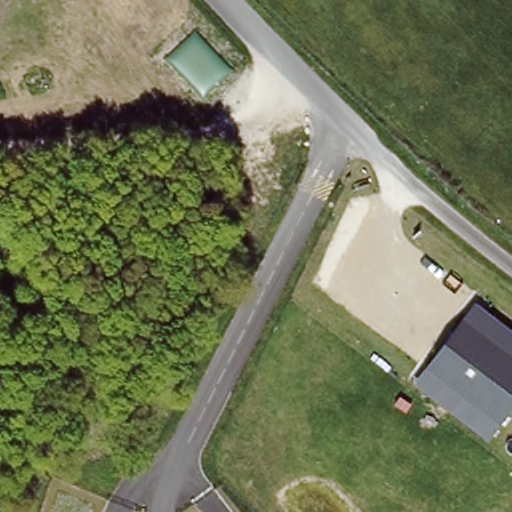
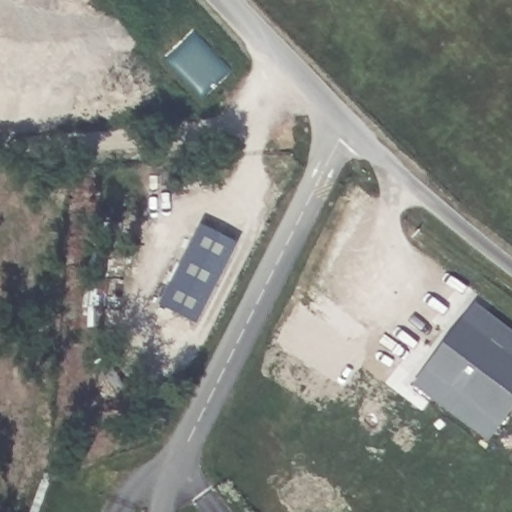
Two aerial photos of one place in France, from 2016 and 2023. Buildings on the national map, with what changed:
new [(200,225),(239,244),(197,325),(160,305),(200,225)]
unchanged [(428,362),(475,301),(512,330),(512,406),(500,422),(486,441),(412,383),(428,362)]

